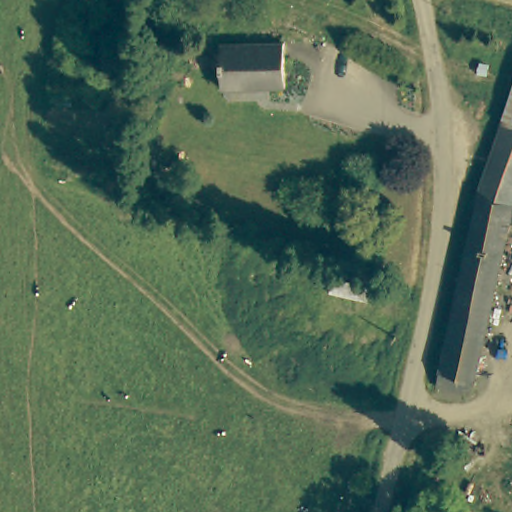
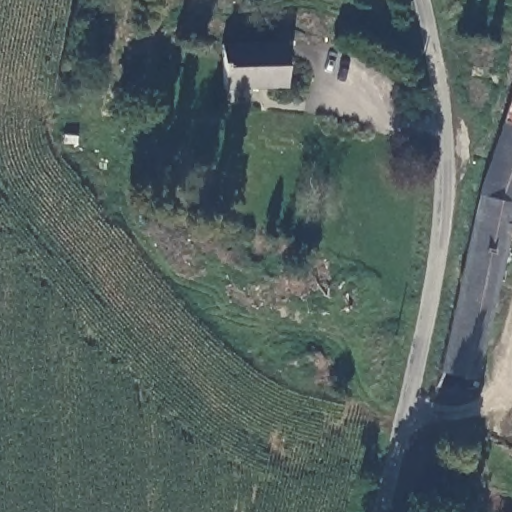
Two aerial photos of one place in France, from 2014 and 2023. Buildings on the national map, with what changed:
unchanged [(290,85),(229,90),(224,46),(286,42),(290,85)]
unchanged [(481,190),(512,97),(512,228),(480,384),(441,375),(481,190)]
unchanged [(490,505),(507,512),(488,512),(490,505)]

